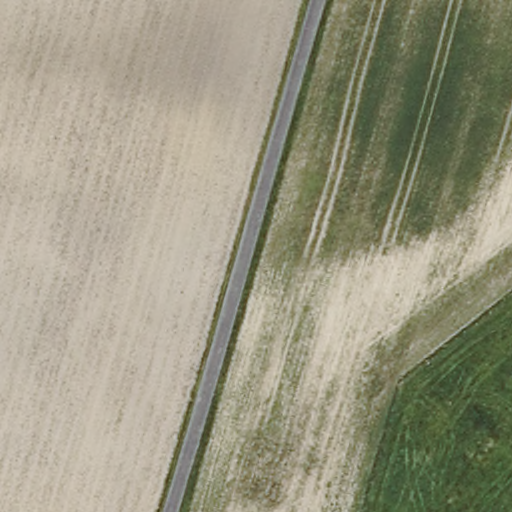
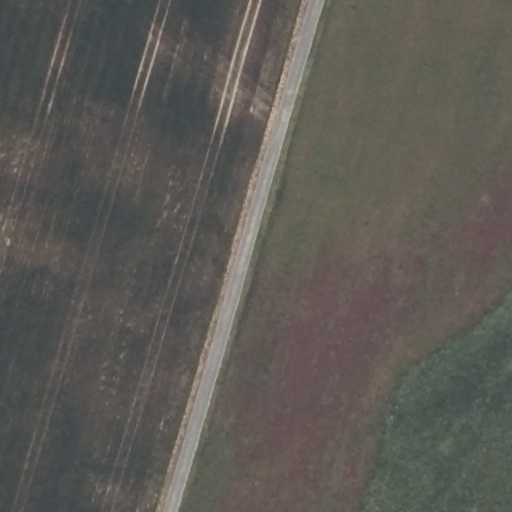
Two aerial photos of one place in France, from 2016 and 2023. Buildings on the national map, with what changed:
[]

